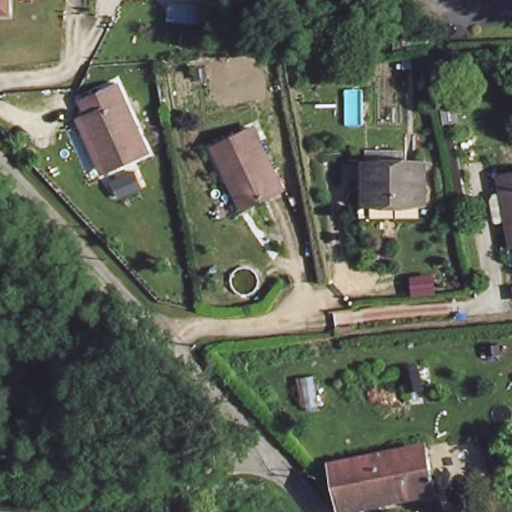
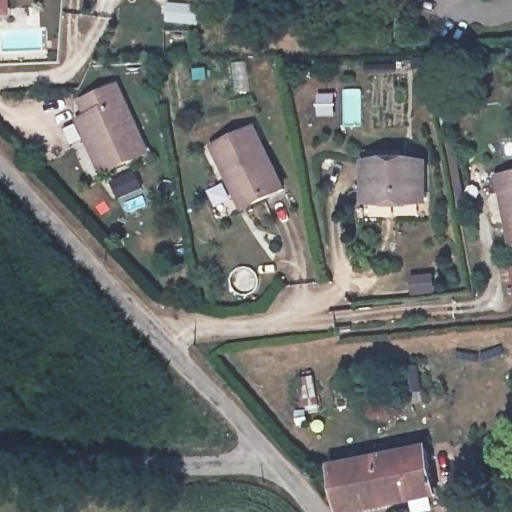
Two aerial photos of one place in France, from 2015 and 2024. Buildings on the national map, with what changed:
unchanged [(0,5),(0,0),(8,0),(8,5),(0,5)]
unchanged [(144,142),(105,160),(77,108),(86,103),(80,92),(114,76),(144,142)]
unchanged [(281,189),(241,210),(213,150),(254,130),(281,189)]
unchanged [(425,162),(427,201),(366,201),(364,164),(425,162)]
unchanged [(495,221),(492,197),(505,189),(500,170),(512,169),(512,242),(507,219),(495,221)]
unchanged [(430,387),(415,390),(415,366),(429,366),(430,387)]
unchanged [(430,450),(436,505),(387,512),(336,512),(336,462),(430,450)]

